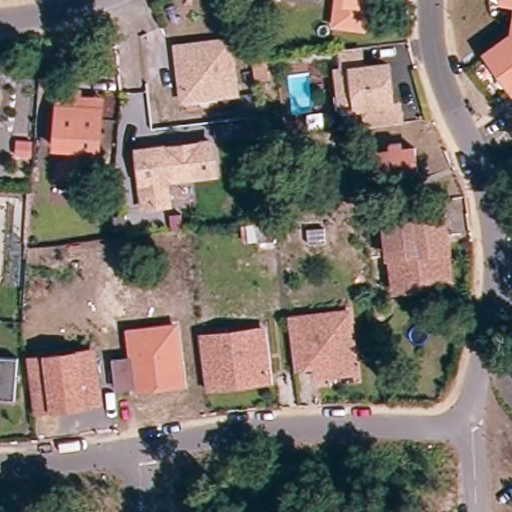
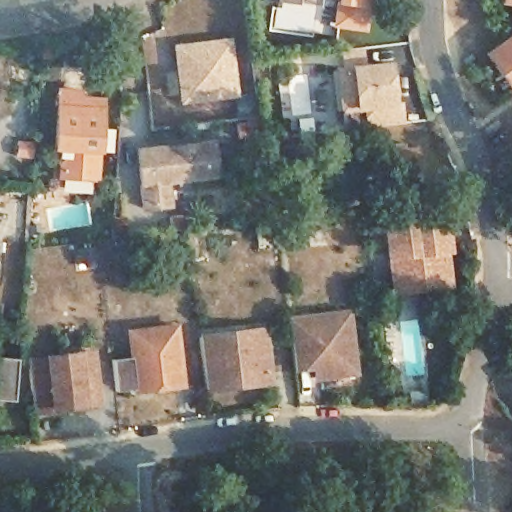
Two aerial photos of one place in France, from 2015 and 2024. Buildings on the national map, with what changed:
unchanged [(361,14),(335,10),(337,0),(363,0),(361,14)]
unchanged [(486,47),(512,28),(512,83),(486,47)]
unchanged [(226,33),(232,86),(180,92),(173,39),(226,33)]
unchanged [(340,88),(337,63),(343,62),(341,42),(359,40),(361,60),(388,57),(392,95),(398,94),(401,116),(367,120),(365,100),(356,101),(342,103),(340,88)]
unchanged [(274,84),(261,86),(258,63),(271,62),(274,84)]
unchanged [(60,168),(61,155),(72,146),(72,140),(56,139),(59,82),(78,83),(78,89),(102,90),(101,96),(97,170),(60,168)]
unchanged [(210,135),(213,165),(187,168),(186,162),(163,165),(166,197),(141,199),(135,143),(210,135)]
unchanged [(384,184),(381,161),(386,160),(385,155),(401,154),(400,147),(412,145),(413,152),(426,151),(429,174),(424,174),(424,179),(384,184)]
unchanged [(397,288),(395,276),(392,250),(388,250),(384,219),(443,211),(447,243),(443,243),(446,269),(448,282),(397,288)]
unchanged [(350,306),(358,366),(318,371),(316,361),(297,363),(292,330),(290,314),(350,306)]
unchanged [(117,380),(114,351),(134,348),(131,323),(177,318),(183,363),(185,377),(164,380),(138,383),(137,377),(131,378),(117,380)]
unchanged [(245,374),(206,378),(204,355),(200,325),(264,318),(269,360),(270,371),(245,374)]
unchanged [(58,345),(60,357),(94,353),(99,392),(34,400),(28,349),(28,348),(58,345)]
unchanged [(15,398),(0,397),(0,354),(18,355),(15,398)]

